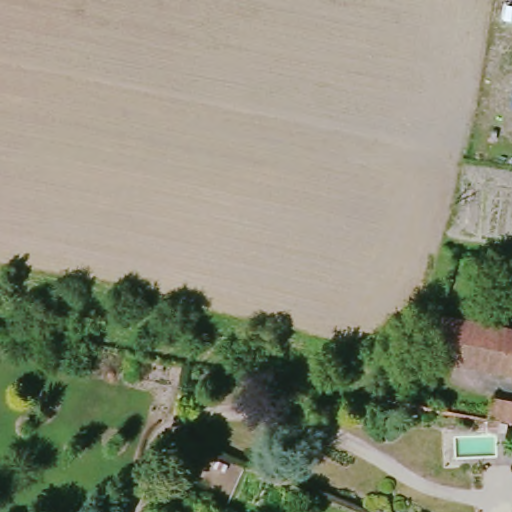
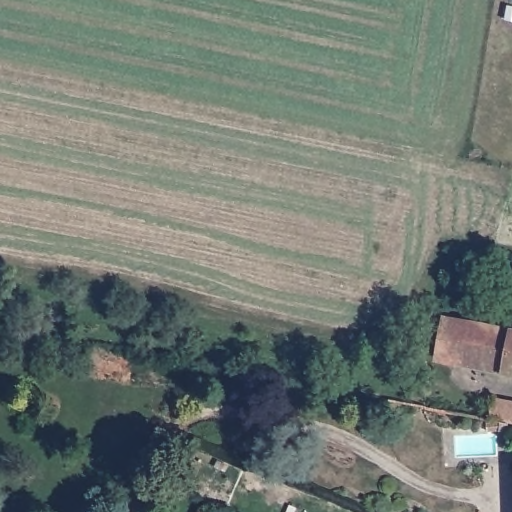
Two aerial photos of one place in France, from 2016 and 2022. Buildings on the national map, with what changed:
unchanged [(441,317),(508,330),(501,370),(434,358),(441,317)]
unchanged [(508,330),(512,330),(512,372),(501,370),(508,330)]
unchanged [(491,401),(512,406),(512,427),(509,426),(488,422),(491,401)]

